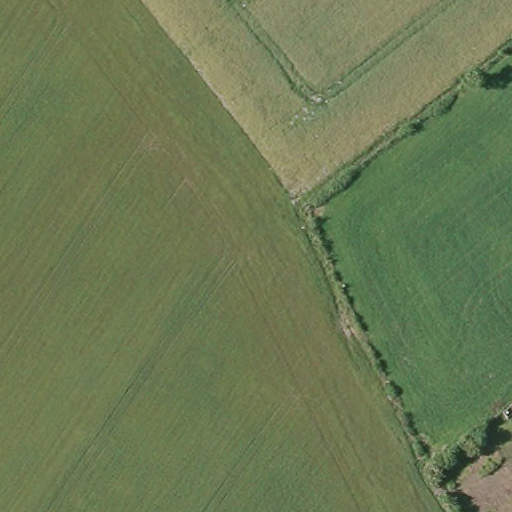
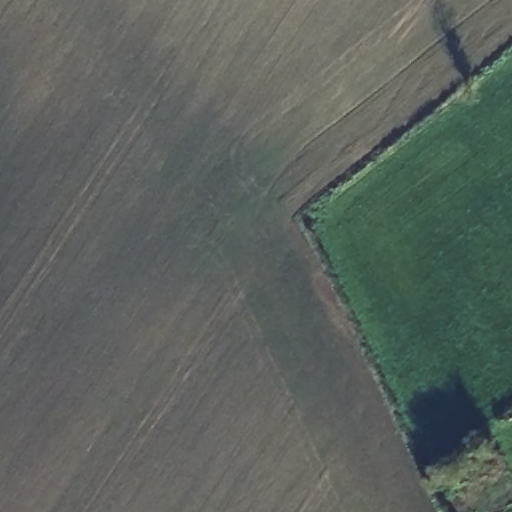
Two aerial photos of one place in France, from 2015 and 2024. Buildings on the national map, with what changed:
[]

